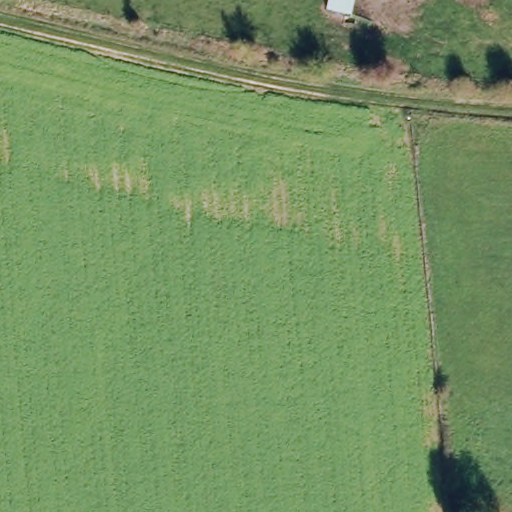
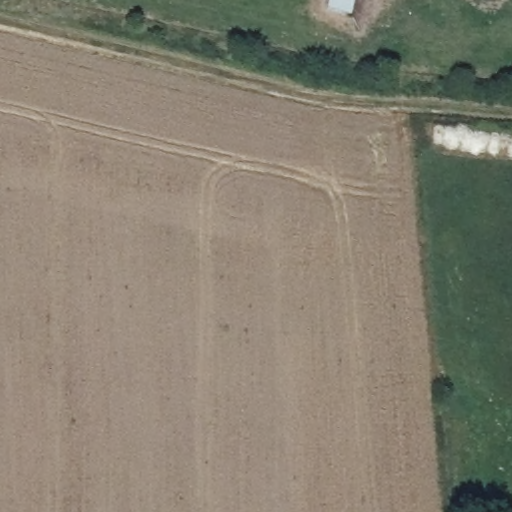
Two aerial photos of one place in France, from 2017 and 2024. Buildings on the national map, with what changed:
unchanged [(353,0),(350,17),(324,14),(327,0),(353,0)]

